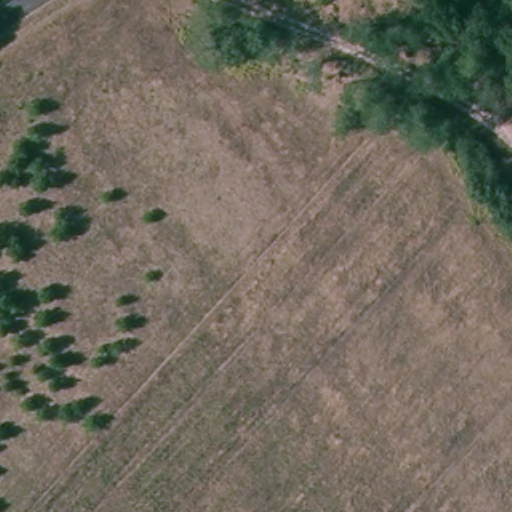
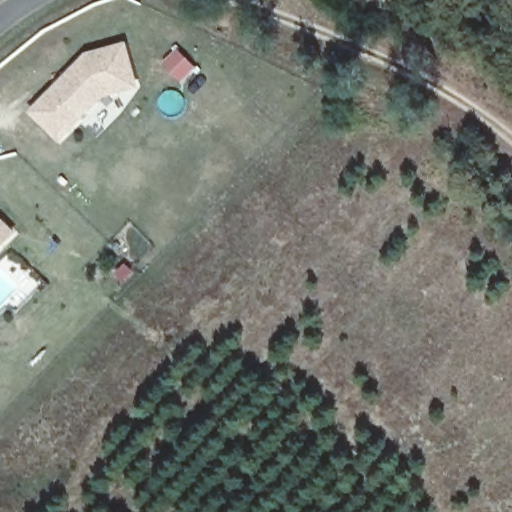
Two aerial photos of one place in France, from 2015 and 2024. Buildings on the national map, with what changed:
new [(30,111),(87,53),(129,42),(140,89),(104,98),(60,143),(30,111)]
new [(18,234),(0,252),(0,217),(18,234)]

